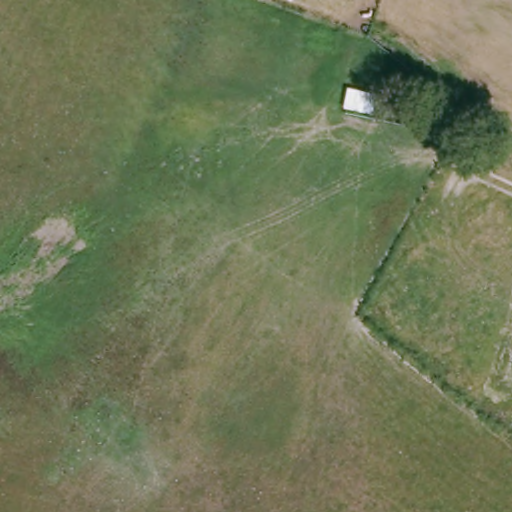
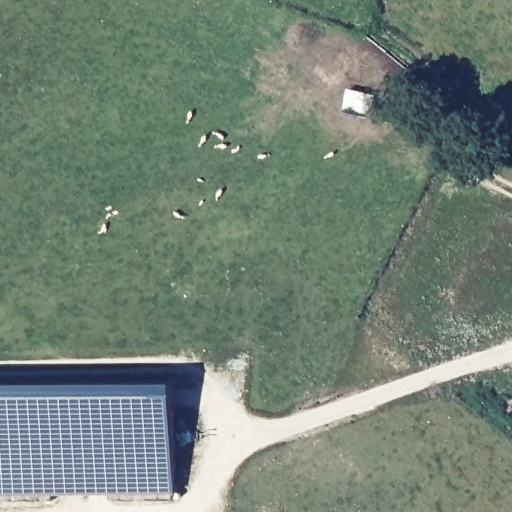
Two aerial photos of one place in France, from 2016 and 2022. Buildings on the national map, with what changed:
unchanged [(370,91),(381,93),(377,113),(367,110),(345,106),(349,87),(370,91)]
new [(177,381),(175,492),(0,495),(0,384),(177,381)]

